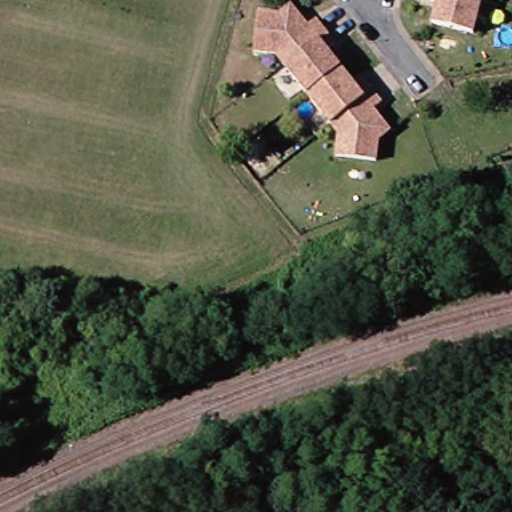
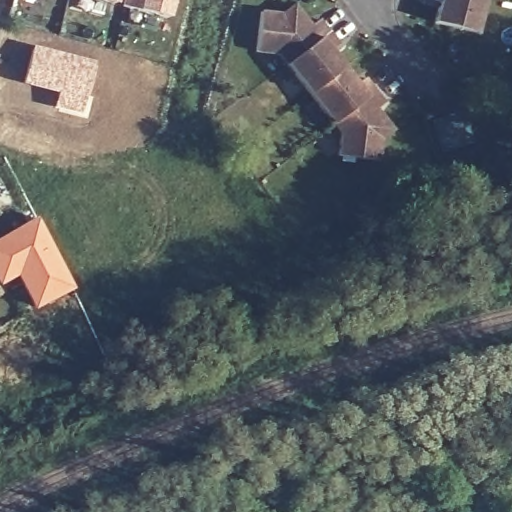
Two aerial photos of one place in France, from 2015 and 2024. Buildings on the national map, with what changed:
new [(81,0),(110,0),(108,7),(81,0)]
new [(118,10),(121,0),(167,0),(161,22),(118,10)]
unchanged [(437,29),(441,7),(431,5),(433,0),(488,0),(480,38),(437,29)]
unchanged [(391,104),(382,112),(399,133),(390,140),(385,163),(343,158),(346,139),(283,58),(256,53),(265,11),(280,13),(296,2),(311,22),(321,14),(343,43),(333,50),(359,83),(370,75),(391,104)]
new [(79,114),(52,107),(55,93),(22,84),(31,45),(93,61),(79,114)]
new [(34,309),(16,275),(0,284),(0,236),(35,216),(72,288),(34,309)]

